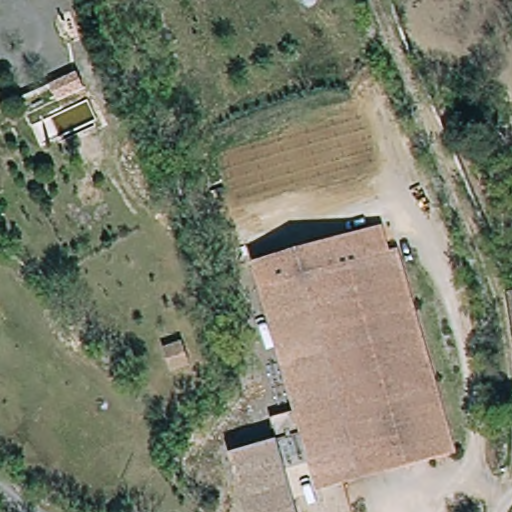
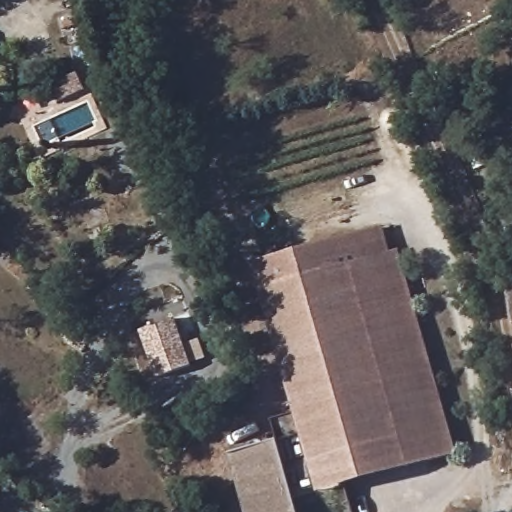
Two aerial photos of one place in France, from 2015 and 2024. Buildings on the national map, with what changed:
unchanged [(241,272),(378,230),(387,254),(400,250),(464,452),(399,472),(390,443),(302,470),(241,272)]
new [(157,379),(140,331),(175,317),(184,342),(200,338),(207,357),(190,362),(191,365),(157,379)]
demolished [(171,387),(163,364),(185,357),(192,380),(171,387)]
unchanged [(279,443),(288,473),(241,488),(231,457),(279,443)]
unchanged [(311,499),(302,470),(390,443),(399,472),(311,499)]
unchanged [(248,512),(241,488),(288,473),(300,512),(248,512)]

